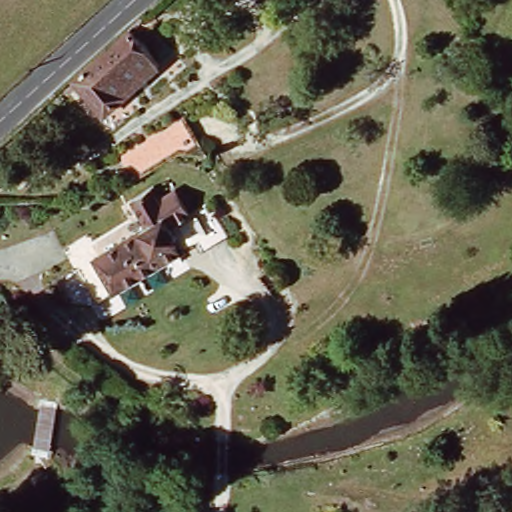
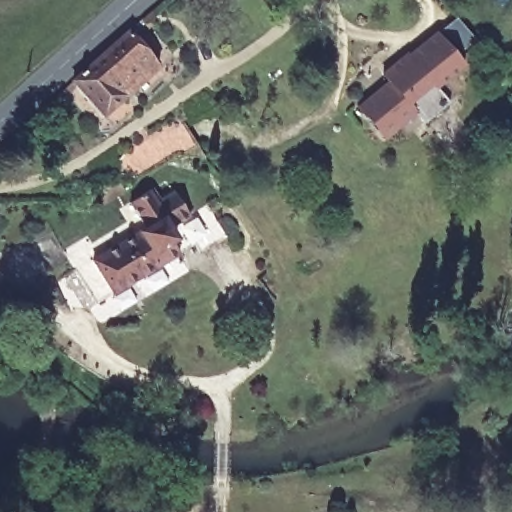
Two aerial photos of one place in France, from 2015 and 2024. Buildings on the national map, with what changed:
new [(357,107),(388,81),(382,74),(409,51),(411,54),(456,17),(475,40),(457,55),(466,66),(436,90),(446,103),(422,122),(415,114),(384,139),(357,107)]
unchanged [(147,29),(136,37),(145,47),(155,68),(100,116),(72,84),(70,81),(131,25),(140,19),(147,29)]
unchanged [(178,159),(166,166),(154,145),(116,170),(107,153),(175,115),(204,167),(178,159)]
unchanged [(116,170),(154,145),(166,166),(127,187),(116,170)]
unchanged [(142,232),(126,206),(129,206),(140,200),(158,191),(165,203),(184,193),(197,216),(204,212),(210,209),(222,231),(226,236),(200,251),(195,244),(187,247),(94,301),(91,296),(74,263),(77,261),(93,252),(98,259),(142,232)]

